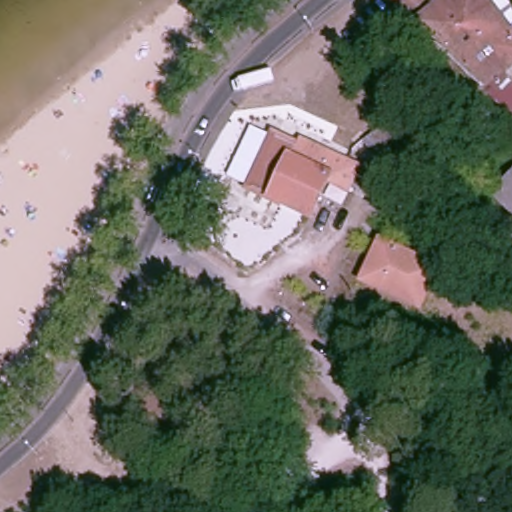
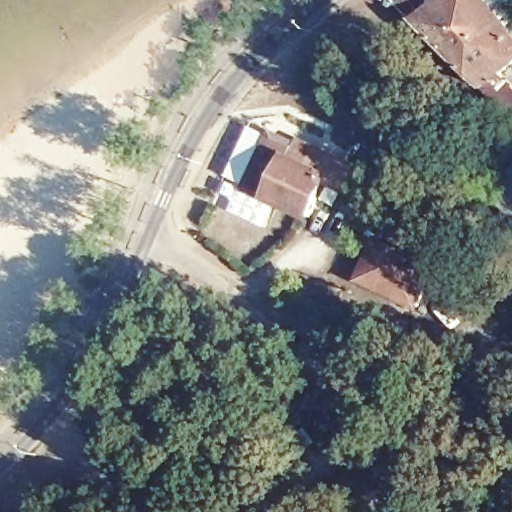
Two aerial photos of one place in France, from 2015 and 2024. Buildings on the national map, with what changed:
unchanged [(412,5),(407,0),(440,0),(445,7),(454,0),(496,0),(512,20),(512,68),(509,70),(491,85),(450,43),(428,21),(423,16),(412,5)]
unchanged [(512,73),(512,106),(491,85),(509,70),(512,73)]
unchanged [(393,119),(407,136),(390,149),(376,131),(393,119)]
unchanged [(362,199),(330,184),(315,217),(257,189),(232,178),(256,128),(280,139),(284,130),(343,156),(375,170),(362,199)]
unchanged [(512,174),(512,205),(497,190),(512,174)]
unchanged [(223,211),(220,218),(212,215),(215,207),(223,211)]
unchanged [(436,266),(419,302),(364,277),(381,240),(436,266)]

